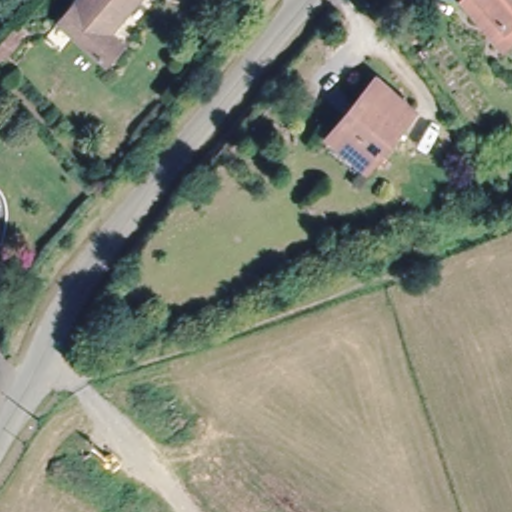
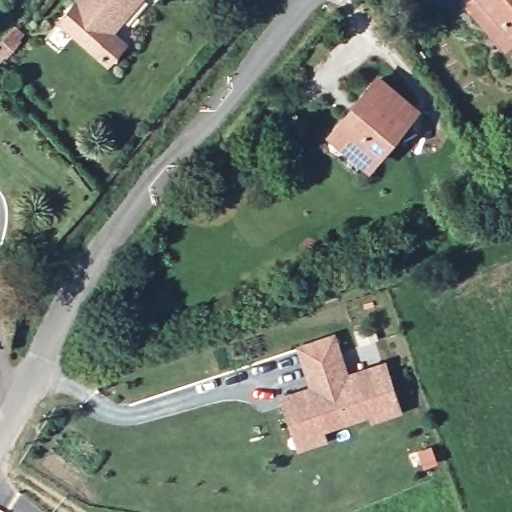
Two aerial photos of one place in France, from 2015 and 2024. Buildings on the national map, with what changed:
unchanged [(111,25),(125,37),(107,56),(60,16),(73,0),(133,0),(111,25)]
unchanged [(498,42),(488,29),(478,19),(462,0),(512,0),(512,9),(500,19),(500,21),(510,32),(507,35),(498,42)]
unchanged [(0,52),(0,44),(10,32),(19,41),(5,56),(0,52)]
unchanged [(368,167),(329,134),(376,77),(415,110),(368,167)]
new [(348,374),(386,359),(402,411),(372,422),(368,415),(324,430),(326,439),(296,449),(279,395),(306,386),(294,345),(335,332),(348,374)]

